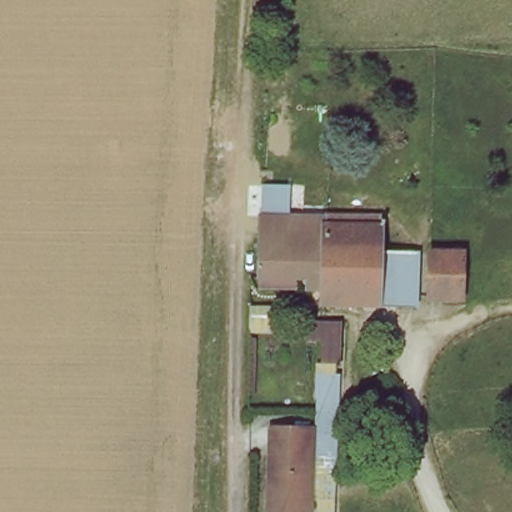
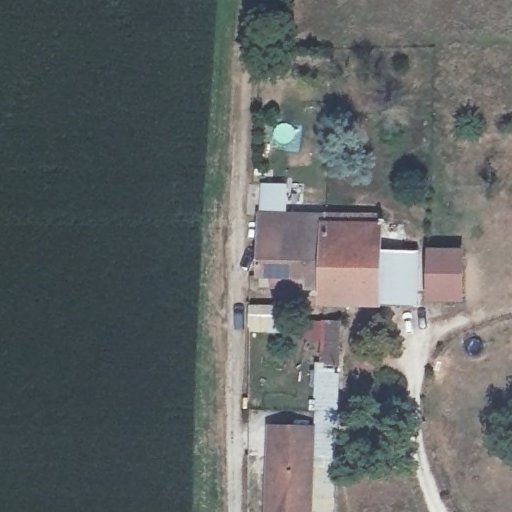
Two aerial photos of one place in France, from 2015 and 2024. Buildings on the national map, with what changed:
unchanged [(260,275),(262,214),(324,215),(380,216),(379,239),(380,246),(413,246),(414,302),(377,301),(378,285),(311,285),(260,285),(260,275)]
unchanged [(456,297),(425,295),(424,252),(457,252),(456,297)]
unchanged [(336,434),(333,512),(312,512),(315,435),(316,395),(320,395),(322,336),(305,336),(305,317),(325,317),(325,321),(338,321),(338,332),(340,332),(340,362),(336,362),(335,370),(338,370),(336,434)]
unchanged [(368,408),(387,407),(389,427),(370,428),(368,408)]
unchanged [(270,423),(308,425),(308,435),(305,512),(267,512),(270,436),(270,423)]

